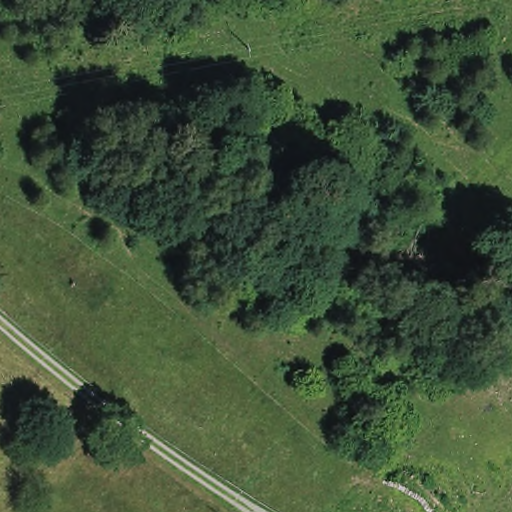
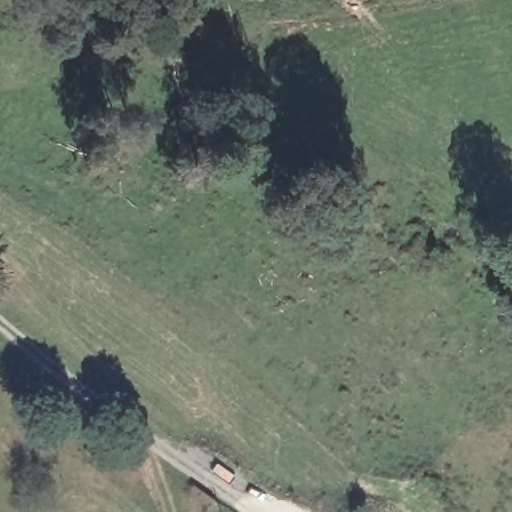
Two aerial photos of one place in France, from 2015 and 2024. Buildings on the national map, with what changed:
unchanged [(420,473),(436,488),(450,502),(440,512),(404,512),(392,500),(390,498),(417,471),(420,473)]

